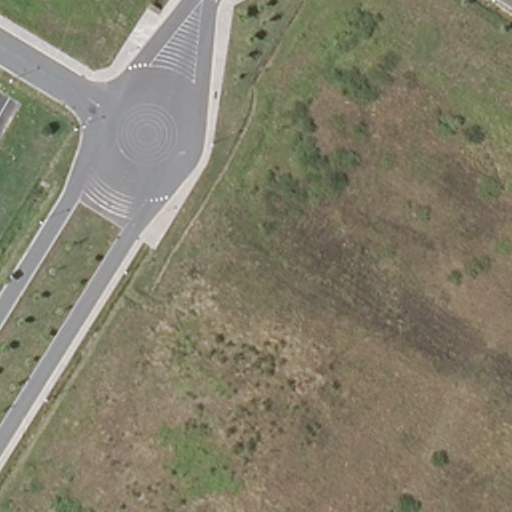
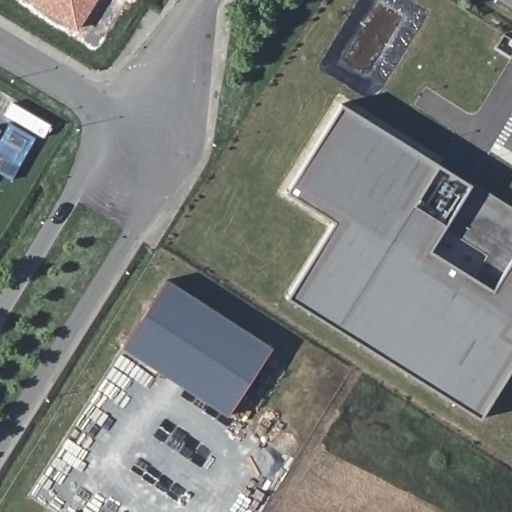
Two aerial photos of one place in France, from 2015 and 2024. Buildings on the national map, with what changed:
new [(30,0),(97,0),(77,30),(30,0)]
new [(342,103),(440,164),(435,173),(465,191),(443,226),(429,249),(369,346),(288,296),(335,220),(287,191),(342,103)]
new [(512,208),(512,220),(465,191),(435,173),(440,164),(512,208)]
new [(473,276),(487,253),(443,226),(465,191),(512,220),(512,370),(482,417),(369,346),(429,249),(473,276)]
new [(270,352),(226,417),(121,350),(166,285),(270,352)]

